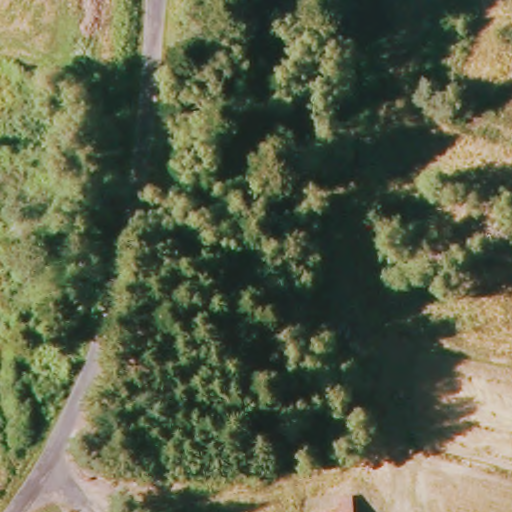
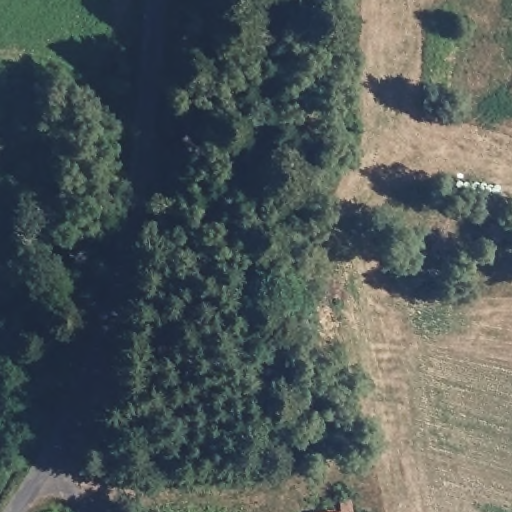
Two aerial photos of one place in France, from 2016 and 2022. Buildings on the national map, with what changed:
unchanged [(142,481),(143,489),(144,495),(121,496),(121,482),(142,481)]
unchanged [(335,500),(347,500),(348,512),(335,512),(335,500)]

